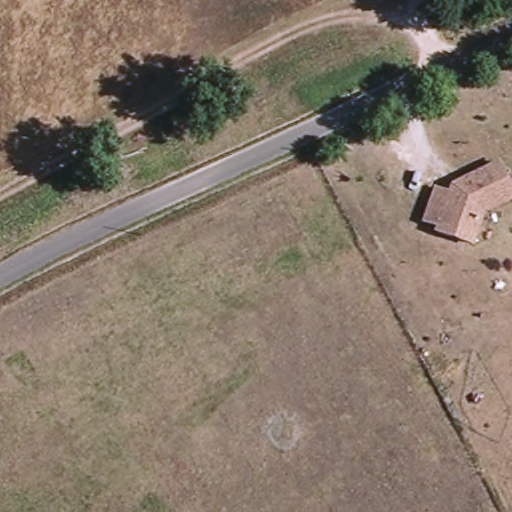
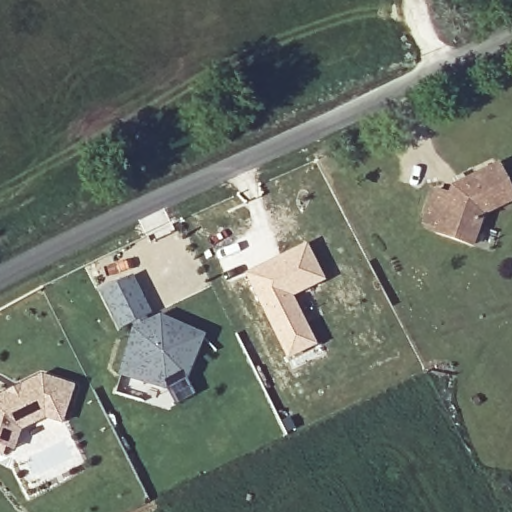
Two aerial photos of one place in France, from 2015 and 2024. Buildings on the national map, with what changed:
unchanged [(512,186),(512,201),(478,216),(482,223),(475,244),(438,232),(440,228),(426,222),(437,189),(451,193),(454,187),(469,190),(475,187),(470,178),(500,163),(512,186)]
new [(307,243),(325,281),(294,298),(318,346),(288,361),(254,296),(244,274),(307,243)]
new [(132,277),(150,313),(144,317),(148,323),(161,317),(205,330),(192,373),(165,388),(120,374),(134,330),(136,329),(133,322),(120,328),(102,292),(132,277)]
new [(0,444),(0,397),(42,376),(75,387),(62,422),(46,417),(21,429),(15,449),(0,444)]

